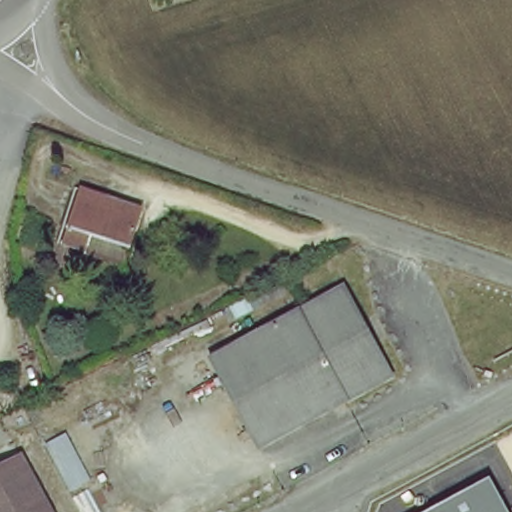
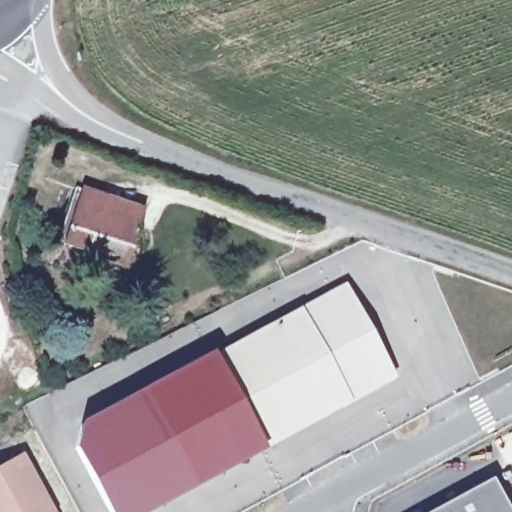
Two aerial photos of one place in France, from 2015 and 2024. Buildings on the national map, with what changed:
unchanged [(88,251),(62,242),(80,187),(146,210),(133,246),(126,264),(88,251)]
unchanged [(347,286),(394,376),(262,444),(212,353),(347,286)]
new [(136,512),(111,512),(76,448),(82,426),(212,353),(262,444),(136,512)]
unchanged [(50,512),(0,512),(0,469),(21,458),(50,512)]
unchanged [(508,512),(425,512),(490,479),(508,512)]

